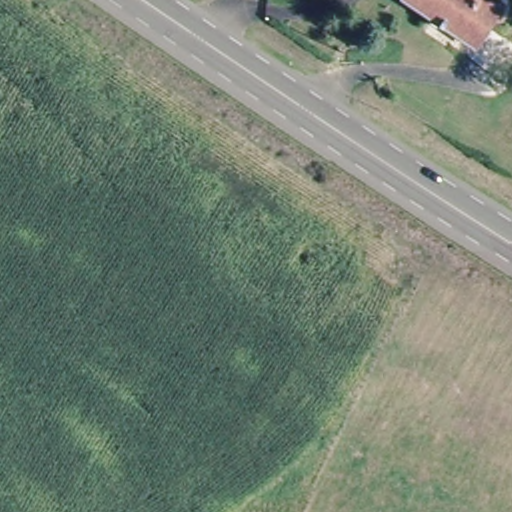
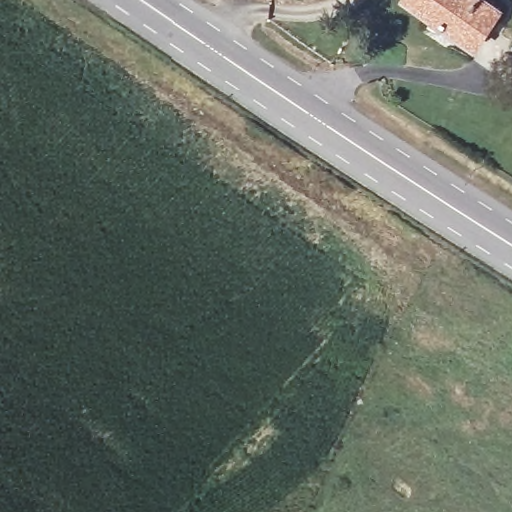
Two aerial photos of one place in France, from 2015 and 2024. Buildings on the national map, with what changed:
unchanged [(414,0),(487,0),(498,9),(488,23),(469,45),(443,24),(414,0)]

